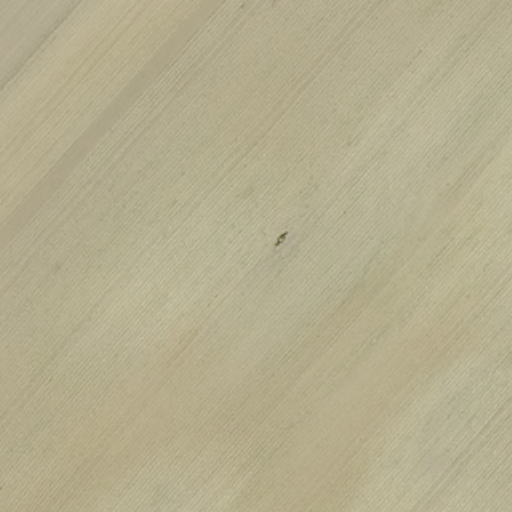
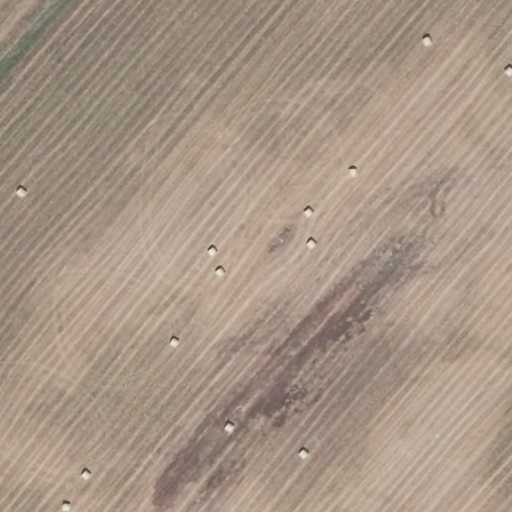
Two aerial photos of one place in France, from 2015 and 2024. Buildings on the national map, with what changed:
[]

